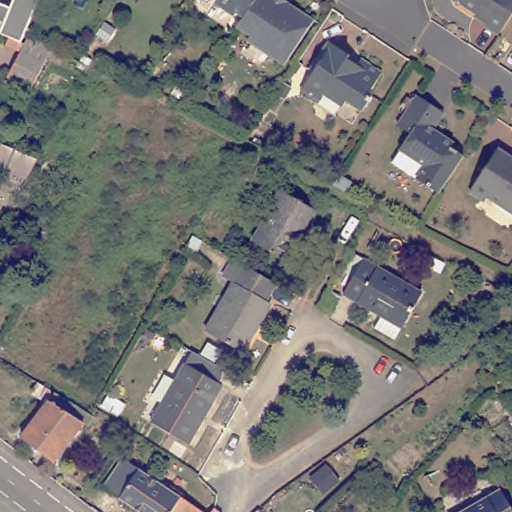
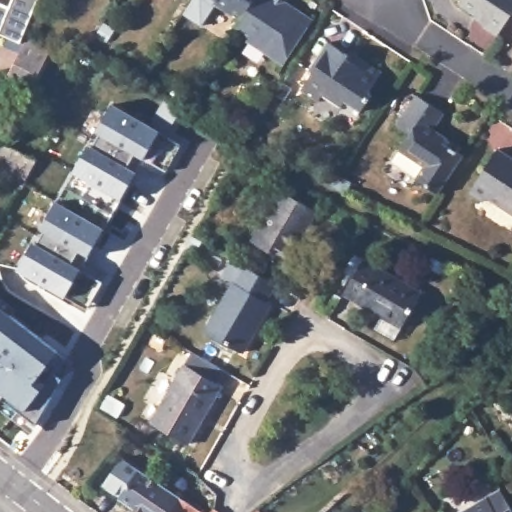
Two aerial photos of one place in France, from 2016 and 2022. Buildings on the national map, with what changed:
unchanged [(21,34),(17,44),(0,36),(0,3),(6,6),(9,0),(35,0),(29,15),(21,34)]
unchanged [(241,18),(233,12),(230,16),(214,5),(217,0),(216,0),(281,0),(296,10),(315,23),(285,69),(269,59),(249,45),(252,41),(234,29),(241,18)]
unchanged [(479,23),(453,4),(456,0),(512,0),(512,6),(493,36),(478,26),(479,23)]
unchanged [(507,34),(512,27),(512,38),(507,34)]
unchanged [(29,95),(4,83),(22,45),(26,37),(51,49),(29,95)]
unchanged [(386,73),(374,89),(374,96),(364,113),(347,101),(344,106),(324,94),(320,99),(305,90),(304,89),(317,73),(313,69),(333,41),(353,54),(363,61),(365,59),(386,73)]
unchanged [(396,154),(404,141),(391,132),(410,102),(436,119),(426,135),(437,143),(435,145),(458,160),(434,198),(412,183),(388,167),(396,154)]
new [(32,240),(38,242),(44,232),(39,229),(73,173),(89,143),(94,145),(99,135),(94,133),(111,104),(159,131),(182,144),(165,177),(141,164),(84,265),(106,278),(88,310),(64,297),(15,269),(32,240)]
unchanged [(495,142),(509,149),(507,154),(512,158),(512,208),(484,189),(481,194),(467,184),(495,142)]
unchanged [(0,143),(30,156),(36,159),(25,179),(21,177),(0,167),(0,143)]
unchanged [(279,191),(314,212),(287,262),(250,242),(279,191)]
unchanged [(382,309),(347,289),(361,267),(352,262),(358,250),(367,255),(426,288),(406,323),(397,336),(374,323),(382,309)]
unchanged [(268,303),(240,352),(206,332),(239,275),(223,265),(228,257),(244,266),(274,284),(265,302),(268,303)]
unchanged [(344,294),(338,304),(325,298),(332,287),(344,294)]
new [(13,316),(60,350),(66,356),(72,363),(64,379),(35,424),(30,431),(0,407),(0,299),(15,309),(13,316)]
unchanged [(485,371),(500,362),(507,372),(492,381),(485,371)]
unchanged [(184,364),(221,386),(188,444),(149,423),(184,364)]
demolished [(87,423),(56,461),(25,436),(51,401),(36,392),(41,383),(94,414),(96,416),(91,426),(87,423)]
unchanged [(436,417),(455,399),(462,406),(444,424),(436,417)]
unchanged [(124,495),(108,484),(124,458),(205,512),(143,512),(121,498),(124,495)]
unchanged [(501,491),(512,512),(462,512),(501,491)]
unchanged [(258,509),(260,510),(270,502),(274,508),(270,512),(255,512),(258,509)]

